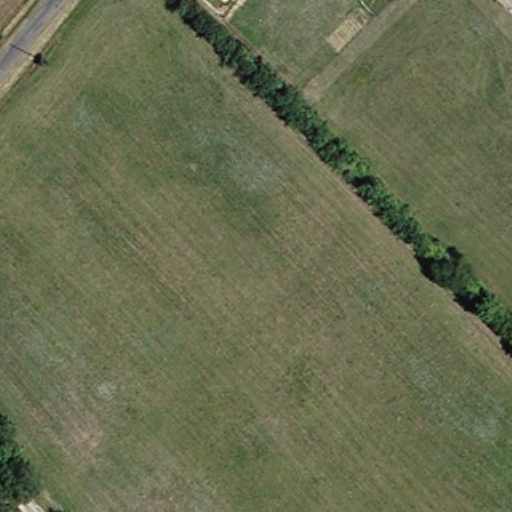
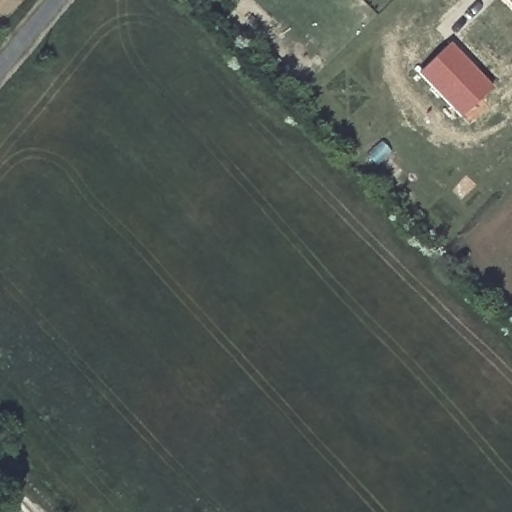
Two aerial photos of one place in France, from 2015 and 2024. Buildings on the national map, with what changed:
new [(460,117),(417,72),(448,42),(492,87),(460,117)]

